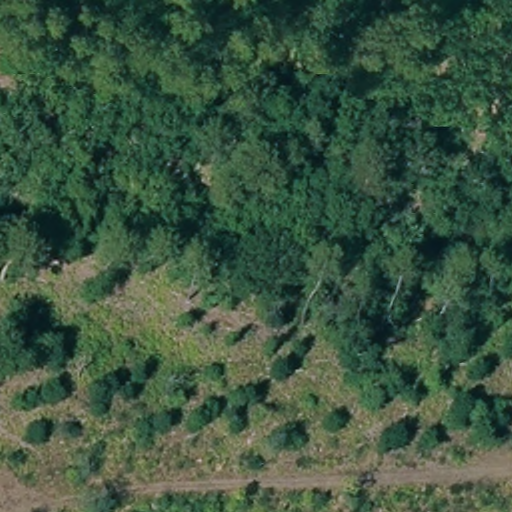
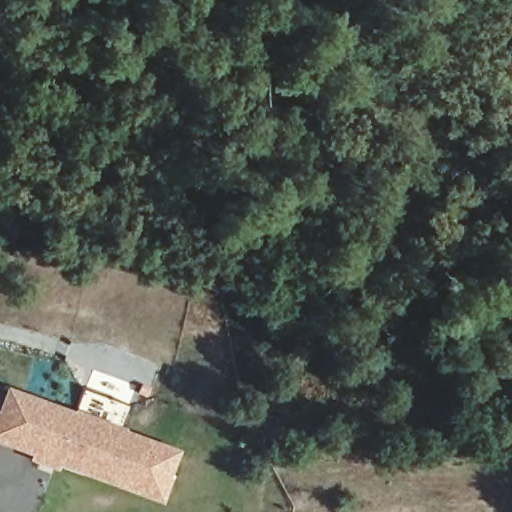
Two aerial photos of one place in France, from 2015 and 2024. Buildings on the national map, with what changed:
new [(74,410),(76,407),(128,427),(127,430),(181,449),(173,474),(176,474),(164,503),(62,465),(60,469),(31,458),(33,452),(0,441),(0,403),(7,385),(74,410)]

